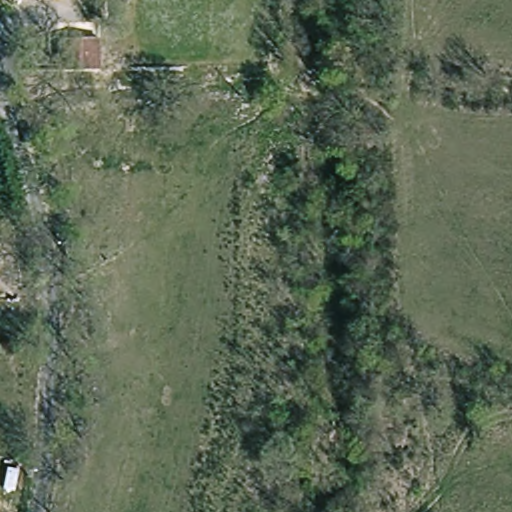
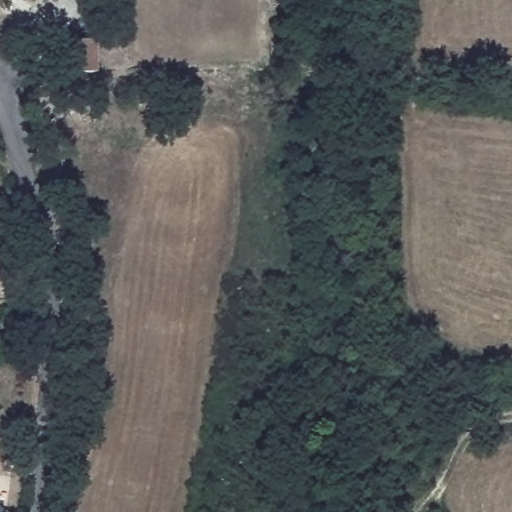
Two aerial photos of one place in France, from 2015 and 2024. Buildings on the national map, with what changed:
unchanged [(83,57),(47,57),(49,28),(85,27),(83,57)]

